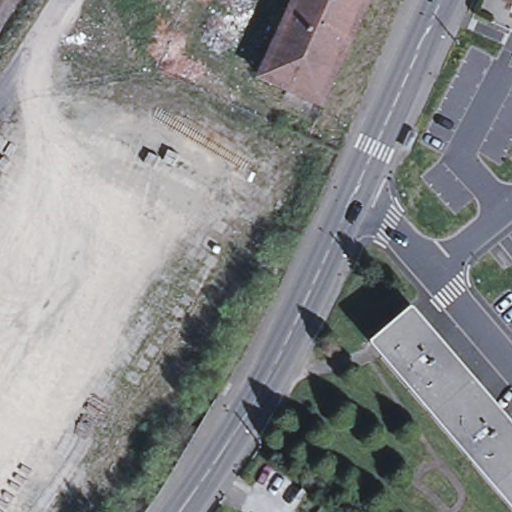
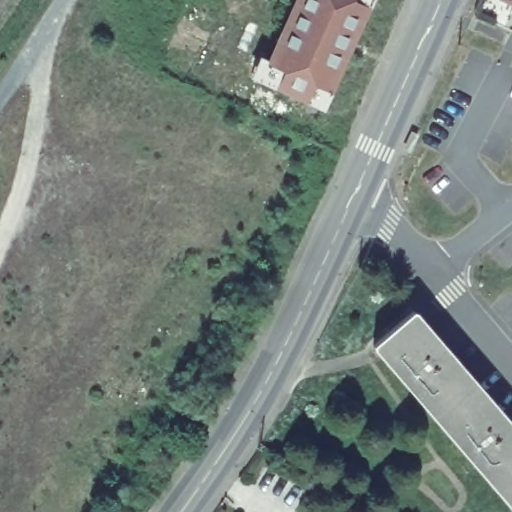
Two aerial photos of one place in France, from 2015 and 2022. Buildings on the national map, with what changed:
unchanged [(262,79),(296,0),(370,0),(323,106),(262,79)]
unchanged [(512,0),(512,4),(503,0),(512,0)]
unchanged [(512,427),(512,507),(372,345),(412,310),(512,427)]

